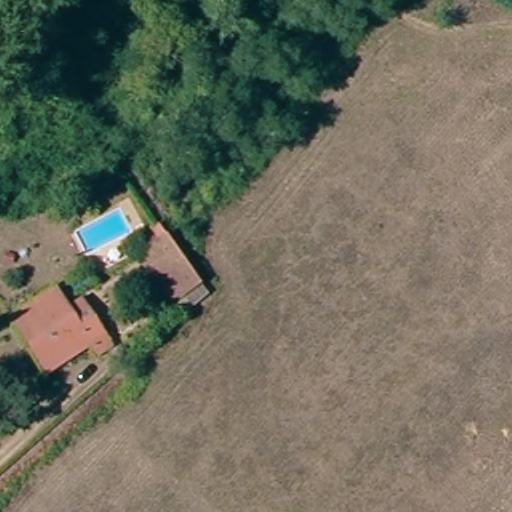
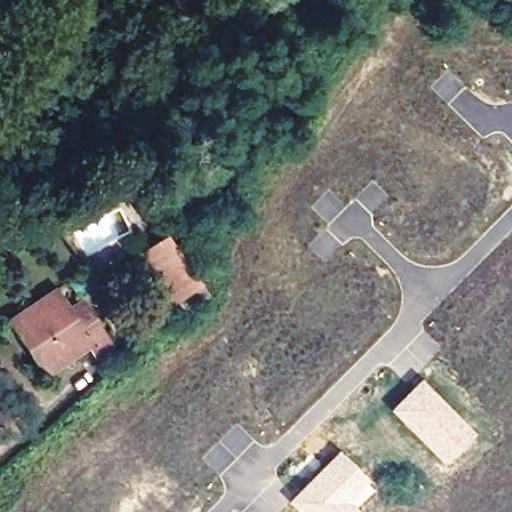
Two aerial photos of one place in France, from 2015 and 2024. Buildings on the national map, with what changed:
unchanged [(138,259),(165,240),(198,286),(170,305),(138,259)]
unchanged [(96,363),(89,352),(45,381),(43,379),(10,327),(54,298),(67,318),(80,310),(102,343),(109,355),(96,363)]
new [(476,433),(444,463),(388,410),(419,378),(476,433)]
new [(347,500),(360,512),(297,512),(286,501),(337,449),(369,480),(347,500)]

